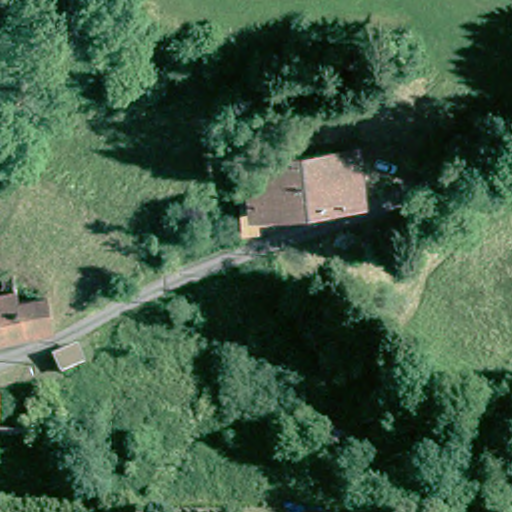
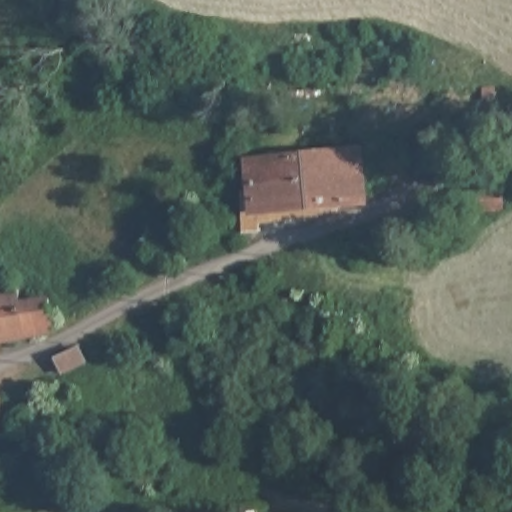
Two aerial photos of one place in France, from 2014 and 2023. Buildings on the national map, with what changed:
unchanged [(252,187),(247,160),(353,138),(365,185),(312,206),(267,217),(268,224),(250,228),(243,190),(252,187)]
unchanged [(498,197),(499,218),(462,219),(462,198),(498,197)]
unchanged [(52,332),(0,345),(0,283),(14,281),(19,307),(47,305),(52,332)]
unchanged [(90,358),(67,370),(60,355),(82,343),(90,358)]

